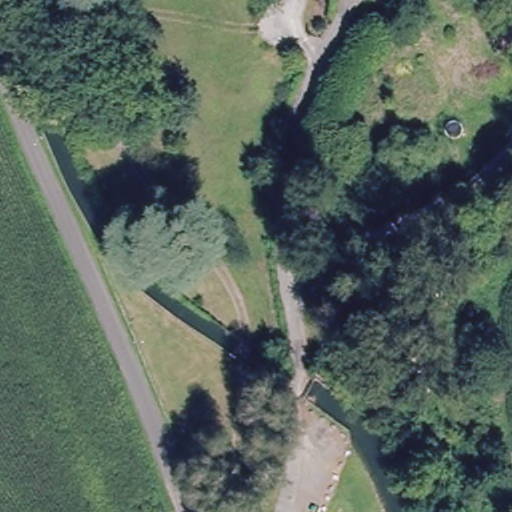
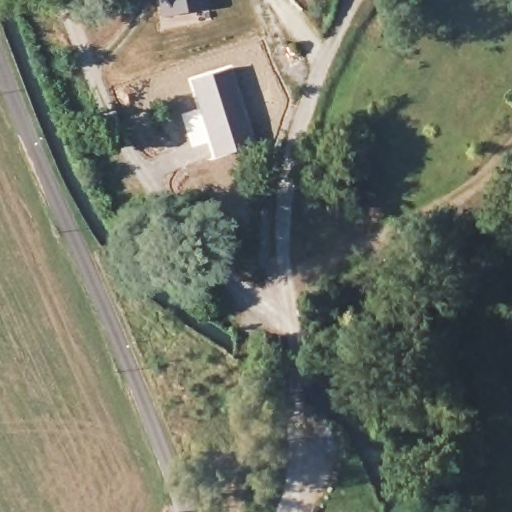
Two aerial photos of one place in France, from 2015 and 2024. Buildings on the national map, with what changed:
new [(158,0),(209,0),(210,7),(161,16),(158,0)]
new [(232,65),(257,142),(214,158),(208,141),(192,146),(190,137),(205,133),(189,79),(232,65)]

